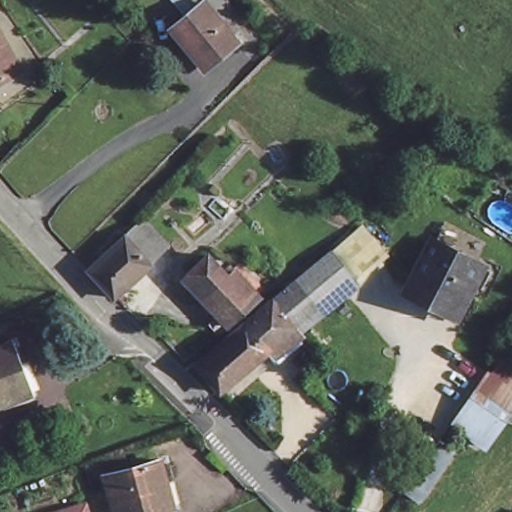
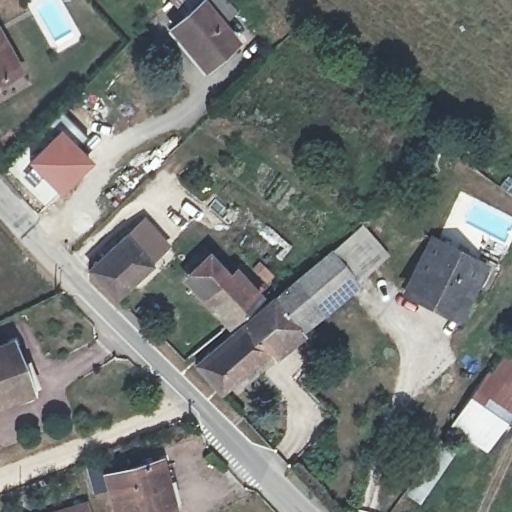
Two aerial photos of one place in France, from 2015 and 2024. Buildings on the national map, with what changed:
unchanged [(203,0),(214,0),(220,6),(211,14),(238,46),(205,71),(169,28),(203,0)]
unchanged [(0,31),(20,63),(0,74),(0,31)]
new [(60,127),(91,161),(58,194),(26,161),(60,127)]
unchanged [(143,217),(172,241),(120,289),(95,263),(94,263),(143,217)]
unchanged [(434,233),(489,266),(460,323),(405,293),(434,233)]
unchanged [(368,270),(323,307),(299,282),(346,244),(368,270)]
unchanged [(212,338),(205,330),(221,315),(187,278),(210,259),(228,282),(237,275),(261,298),(212,338)]
unchanged [(196,364),(274,301),(294,285),(319,312),(298,328),(218,392),(196,364)]
unchanged [(0,402),(0,346),(10,342),(33,389),(0,402)]
unchanged [(512,363),(512,391),(487,374),(500,355),(512,363)]
unchanged [(512,391),(512,413),(505,423),(470,398),(487,374),(512,391)]
unchanged [(470,398),(505,423),(490,446),(452,423),(470,398)]
unchanged [(432,440),(446,450),(410,497),(398,489),(432,440)]
unchanged [(169,474),(161,476),(169,503),(128,512),(116,512),(106,471),(164,457),(169,474)]
unchanged [(71,508),(88,503),(90,512),(58,512),(71,508)]

